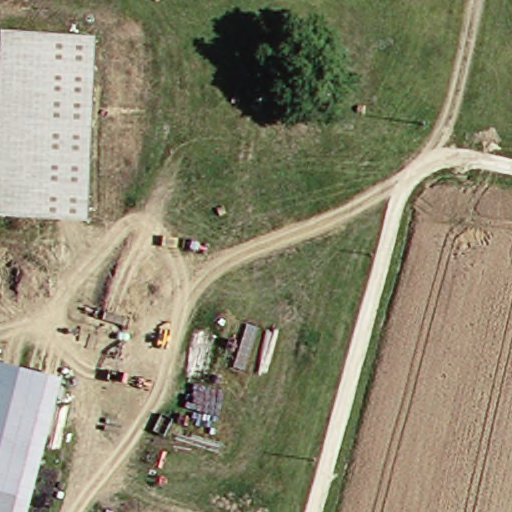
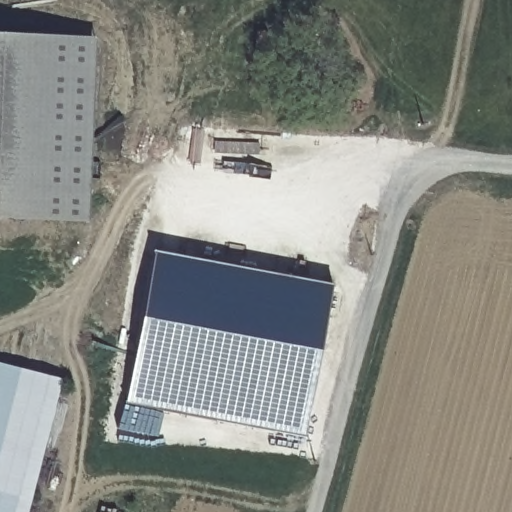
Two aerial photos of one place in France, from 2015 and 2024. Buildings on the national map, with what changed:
unchanged [(78,208),(77,221),(77,222),(76,222),(34,220),(0,218),(0,37),(86,42),(78,208)]
new [(336,288),(308,442),(129,409),(156,256),(336,288)]
unchanged [(0,476),(0,363),(27,369),(0,476)]
unchanged [(35,512),(0,512),(0,486),(30,370),(70,381),(35,512)]

